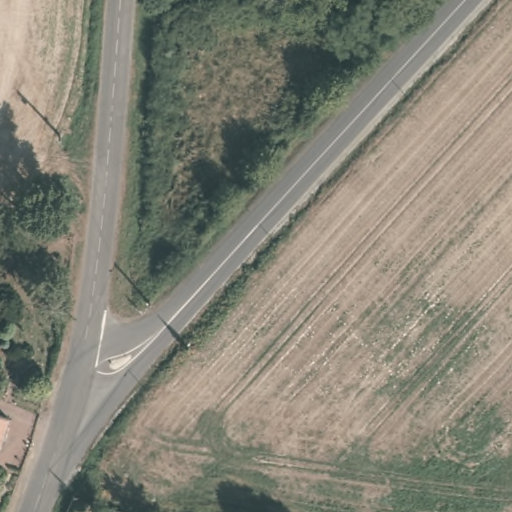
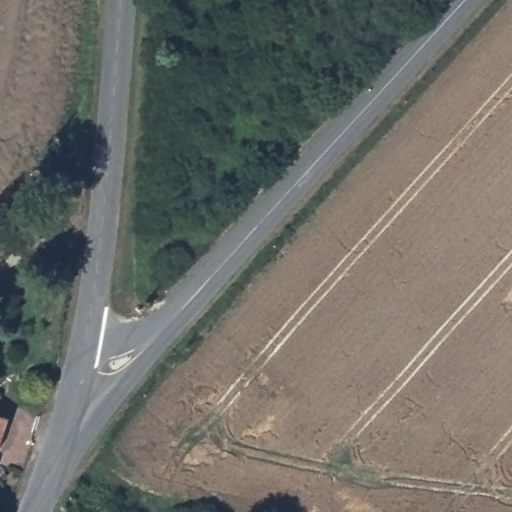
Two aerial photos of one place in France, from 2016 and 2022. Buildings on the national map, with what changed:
unchanged [(0,272),(0,245),(9,238),(22,255),(0,272)]
unchanged [(0,424),(5,425),(0,445),(0,424)]

